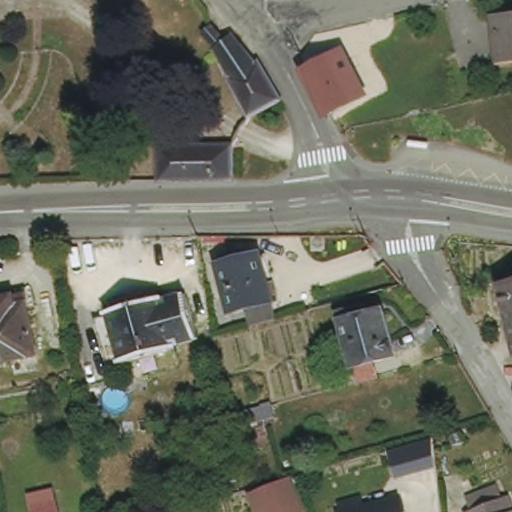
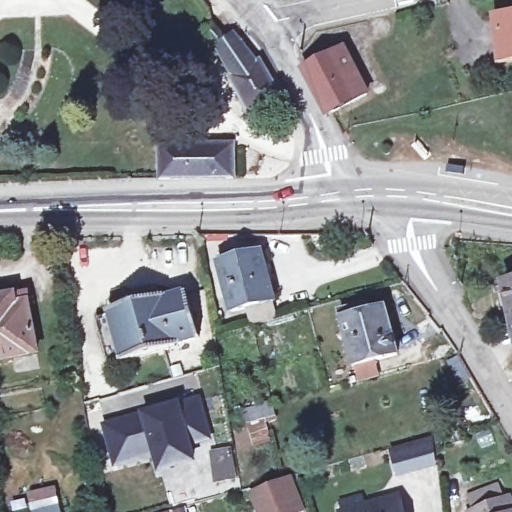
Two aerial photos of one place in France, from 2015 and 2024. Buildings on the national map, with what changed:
unchanged [(512,12),(512,51),(500,52),(496,14),(512,12)]
unchanged [(278,94),(255,107),(250,97),(240,80),(232,69),(221,46),(205,25),(215,17),(228,33),(236,27),(240,32),(238,33),(257,58),(260,56),(282,92),(278,94)]
unchanged [(344,49),(368,93),(332,110),(309,65),(344,49)]
unchanged [(235,171),(194,171),(195,142),(235,141),(235,171)]
unchanged [(194,171),(161,172),(160,142),(195,142),(194,171)]
unchanged [(242,249),(240,244),(254,241),(260,244),(268,269),(274,289),(233,301),(219,256),(242,249)]
unchanged [(505,277),(512,276),(512,311),(505,277)]
unchanged [(0,288),(11,285),(13,297),(25,295),(35,341),(38,357),(12,362),(9,346),(0,348),(0,288)]
unchanged [(112,307),(163,293),(165,296),(187,290),(202,332),(178,338),(180,341),(127,356),(125,351),(113,311),(112,307)]
unchanged [(368,296),(372,304),(387,300),(400,343),(355,356),(342,303),(368,296)]
new [(117,465),(106,427),(146,416),(177,407),(197,401),(208,439),(188,444),(193,461),(160,470),(156,453),(144,457),(117,465)]
unchanged [(465,425),(470,438),(458,441),(454,429),(465,425)]
new [(428,439),(435,464),(393,475),(387,450),(428,439)]
unchanged [(247,493),(272,483),(287,478),(299,510),(295,512),(255,512),(247,493)]
unchanged [(475,511),(480,509),(473,494),(502,483),(508,498),(512,497),(512,512),(475,512),(475,511)]
unchanged [(30,495),(54,488),(61,512),(35,512),(30,495)]
unchanged [(344,510),(346,508),(343,497),(365,491),(368,503),(403,494),(408,512),(345,512),(344,510)]

